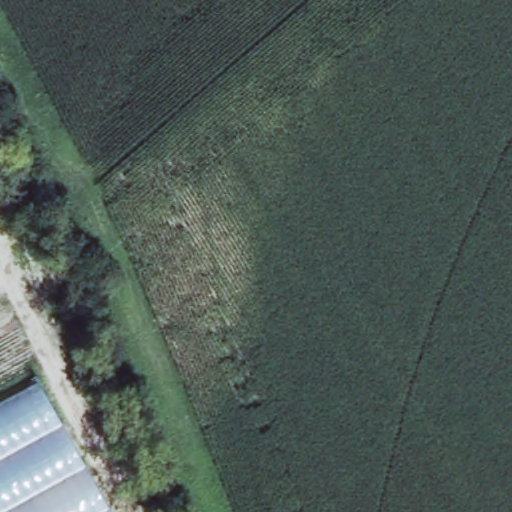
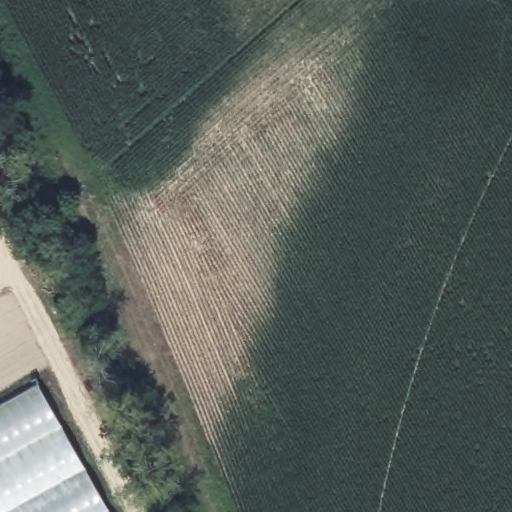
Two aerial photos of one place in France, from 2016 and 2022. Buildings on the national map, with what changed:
unchanged [(108,512),(0,512),(0,407),(38,385),(108,512)]

